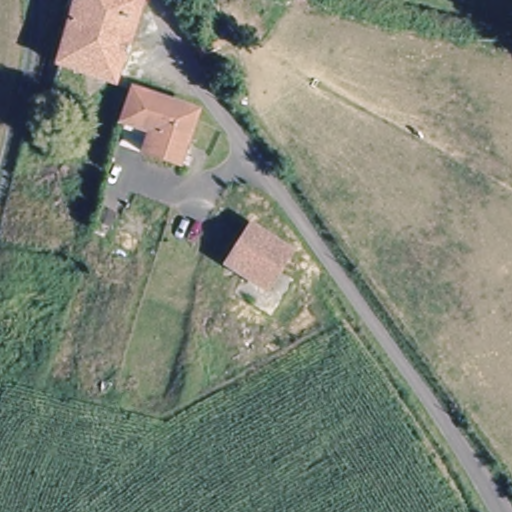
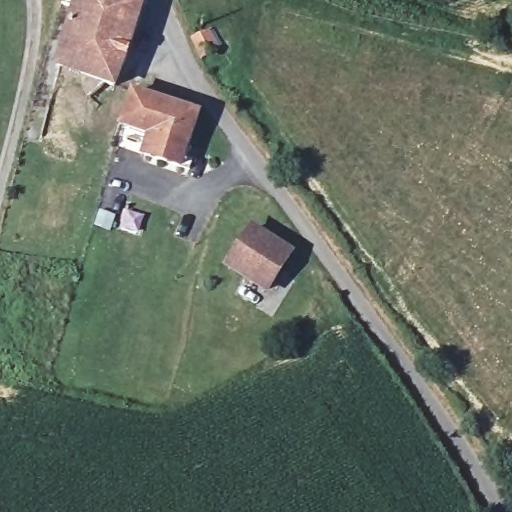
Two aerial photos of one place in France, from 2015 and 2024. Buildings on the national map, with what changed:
unchanged [(59,64),(80,0),(143,0),(118,87),(59,64)]
unchanged [(197,38),(210,30),(223,51),(208,61),(197,38)]
unchanged [(190,106),(196,108),(180,161),(145,151),(151,130),(122,121),(123,117),(131,89),(190,106)]
unchanged [(289,249),(267,287),(228,265),(251,226),(289,249)]

